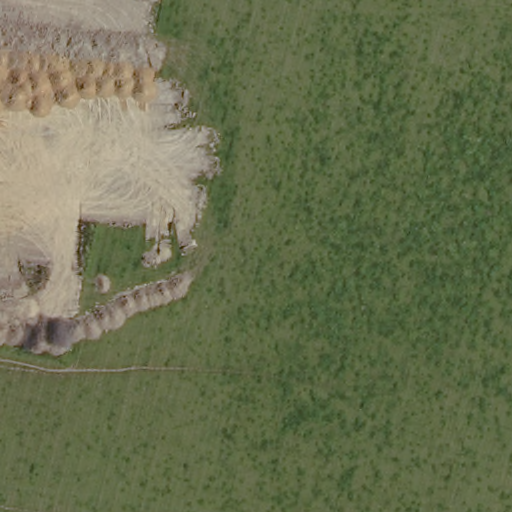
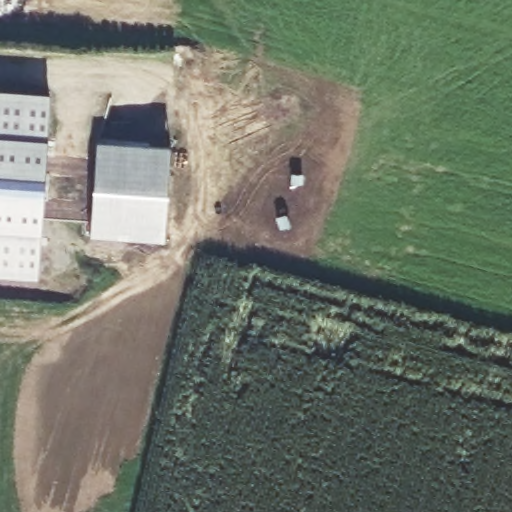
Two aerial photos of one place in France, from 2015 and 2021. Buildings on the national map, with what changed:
new [(37,279),(0,276),(0,90),(50,94),(37,279)]
new [(92,135),(167,140),(161,232),(86,227),(92,135)]

